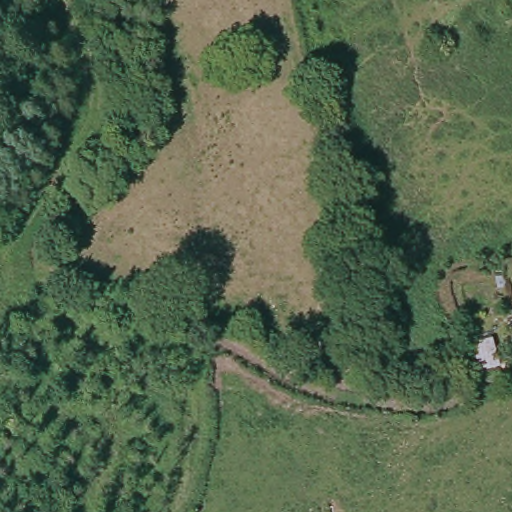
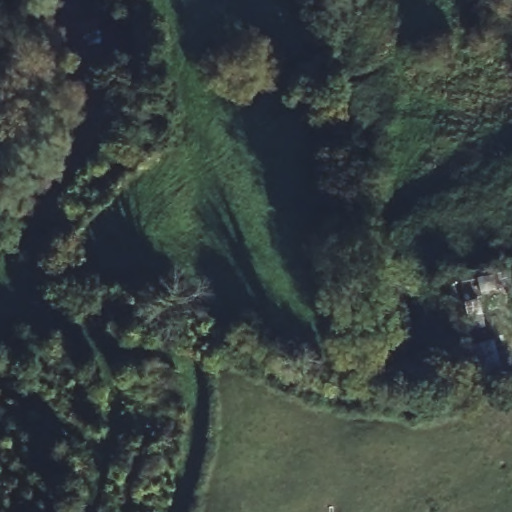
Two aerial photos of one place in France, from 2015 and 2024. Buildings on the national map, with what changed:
unchanged [(493,373),(489,359),(512,352),(512,367),(493,373)]

